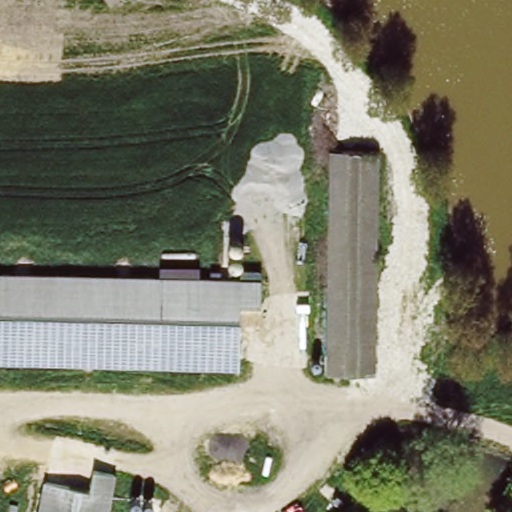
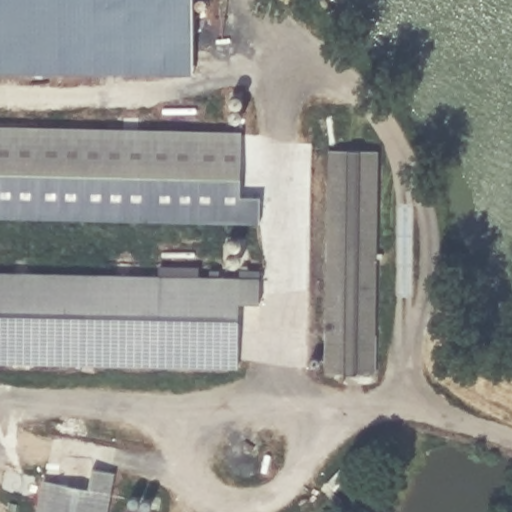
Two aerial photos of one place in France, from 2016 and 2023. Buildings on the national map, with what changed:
new [(0,74),(0,0),(195,0),(195,74),(0,74)]
new [(242,196),(262,196),(262,225),(0,218),(0,126),(244,131),(242,196)]
unchanged [(381,152),(375,373),(325,370),(333,148),(381,152)]
unchanged [(260,278),(258,302),(240,303),(237,369),(0,363),(0,273),(260,278)]
unchanged [(53,480),(95,486),(98,467),(117,473),(110,512),(47,512),(53,480)]

